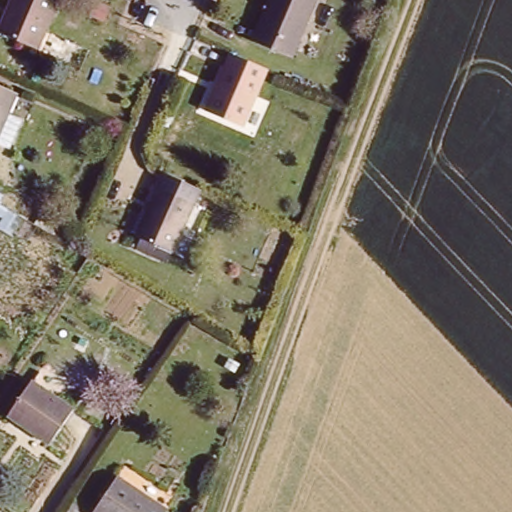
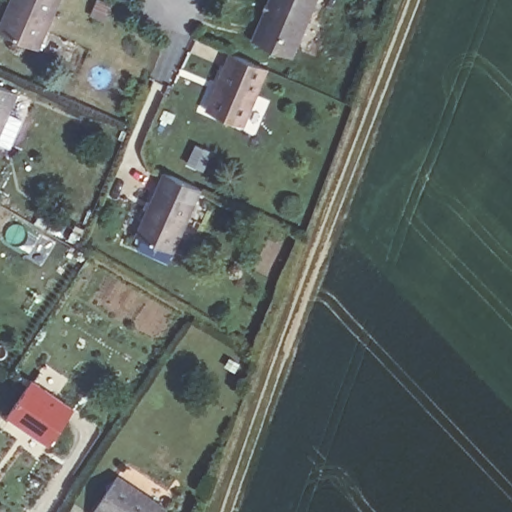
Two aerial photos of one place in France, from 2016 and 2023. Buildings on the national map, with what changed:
unchanged [(8,0),(59,0),(40,47),(0,25),(0,18),(8,0)]
unchanged [(255,32),(268,0),(316,0),(295,49),(255,32)]
unchanged [(270,65),(245,122),(210,107),(235,49),(270,65)]
unchanged [(20,90),(0,136),(0,81),(20,90)]
unchanged [(198,190),(180,243),(142,230),(160,177),(198,190)]
unchanged [(75,405),(51,441),(10,413),(35,377),(75,405)]
unchanged [(118,470),(170,505),(165,512),(91,512),(118,470)]

